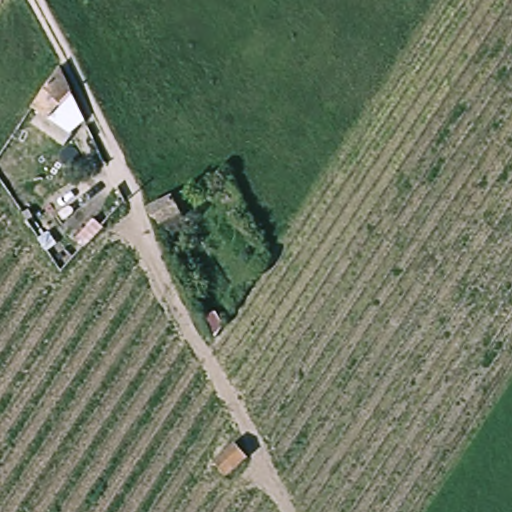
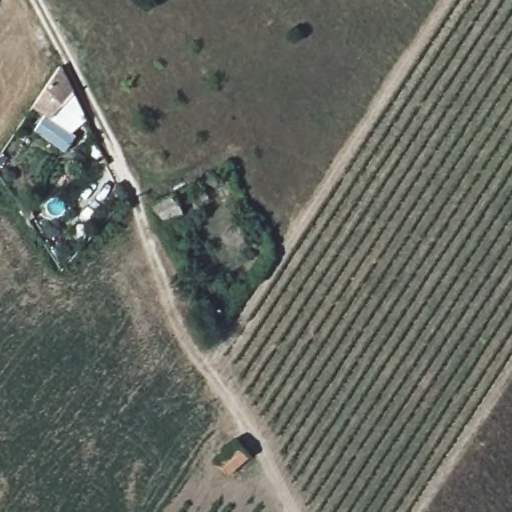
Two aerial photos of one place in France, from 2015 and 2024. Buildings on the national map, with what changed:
unchanged [(52,123),(28,106),(53,71),(76,87),(52,123)]
unchanged [(152,211),(184,205),(184,217),(157,223),(152,211)]
unchanged [(248,464),(226,479),(216,462),(238,442),(248,464)]

